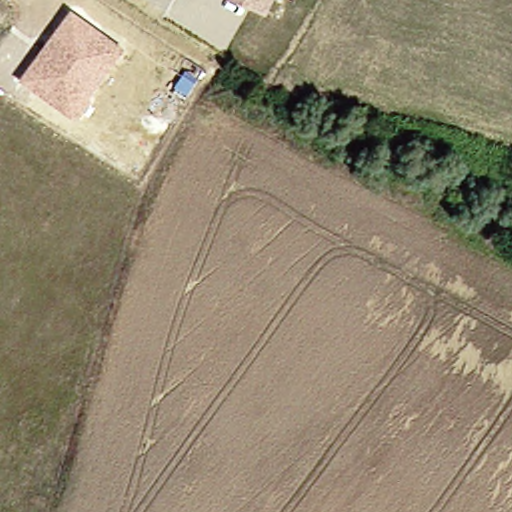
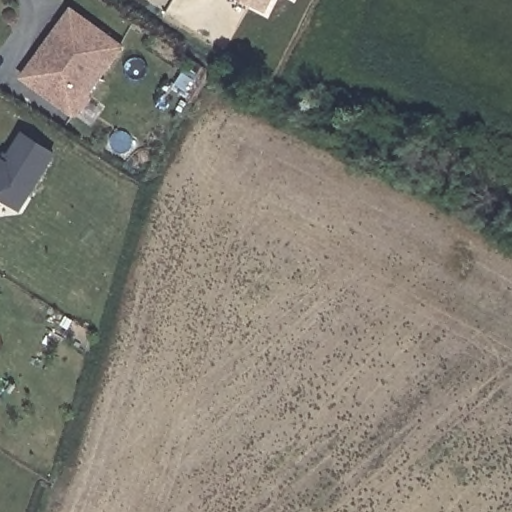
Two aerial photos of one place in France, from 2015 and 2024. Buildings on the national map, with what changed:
unchanged [(251,0),(272,0),(268,9),(251,0)]
unchanged [(72,7),(127,46),(90,94),(94,97),(79,119),(19,79),(72,7)]
new [(0,198),(0,161),(5,164),(23,136),(53,155),(27,197),(19,210),(0,198)]

